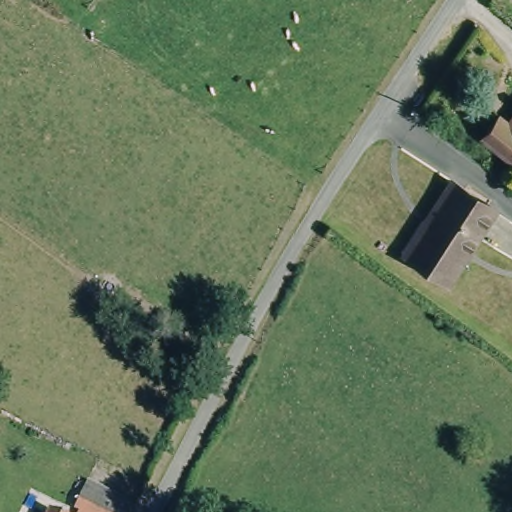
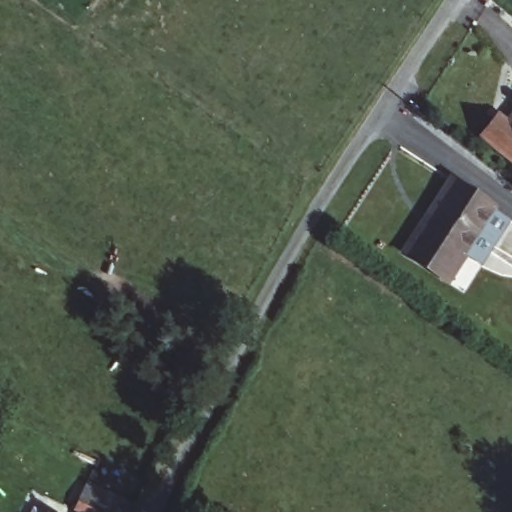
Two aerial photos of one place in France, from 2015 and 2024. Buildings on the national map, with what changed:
unchanged [(481,133),(498,110),(509,119),(512,114),(512,156),(481,133)]
unchanged [(433,216),(457,177),(498,201),(449,280),(415,258),(409,254),(433,216)]
unchanged [(141,512),(88,512),(85,511),(96,488),(142,510),(141,512)]

